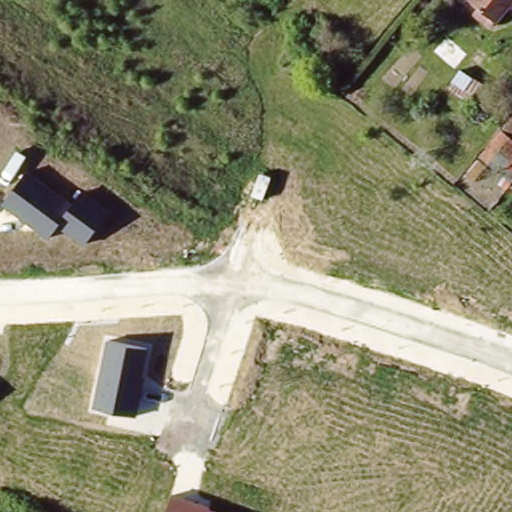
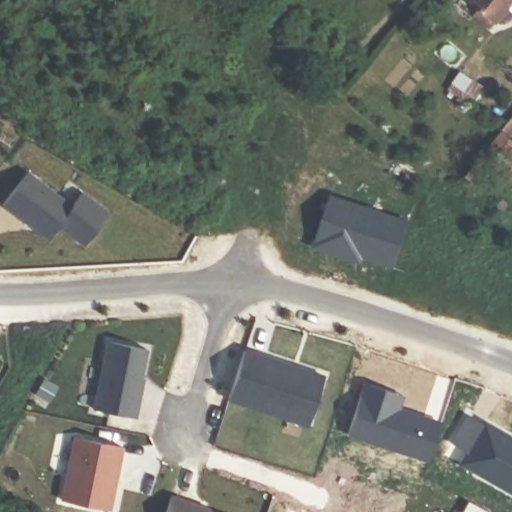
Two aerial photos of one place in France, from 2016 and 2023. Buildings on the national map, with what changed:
unchanged [(475,8),(480,0),(505,0),(491,19),(475,8)]
unchanged [(512,0),(512,4),(507,0),(512,0)]
unchanged [(497,182),(510,165),(499,158),(477,185),(465,176),(512,116),(512,182),(507,189),(497,182)]
unchanged [(30,168),(74,201),(83,191),(111,210),(85,246),(57,227),(49,240),(1,205),(30,168)]
new [(350,259),(313,246),(330,195),(408,221),(393,267),(362,256),(360,261),(350,259)]
unchanged [(92,409),(105,341),(149,348),(142,384),(145,385),(137,418),(92,409)]
new [(247,350),(328,377),(312,425),(232,398),(247,350)]
new [(397,393),(392,407),(442,423),(430,462),(349,437),(365,383),(397,393)]
new [(512,493),(478,473),(461,463),(467,451),(452,443),(468,415),(484,424),(485,422),(512,438),(512,493)]
new [(75,437),(123,447),(110,510),(62,500),(75,437)]
unchanged [(210,503),(209,508),(222,512),(165,512),(172,492),(210,503)]

